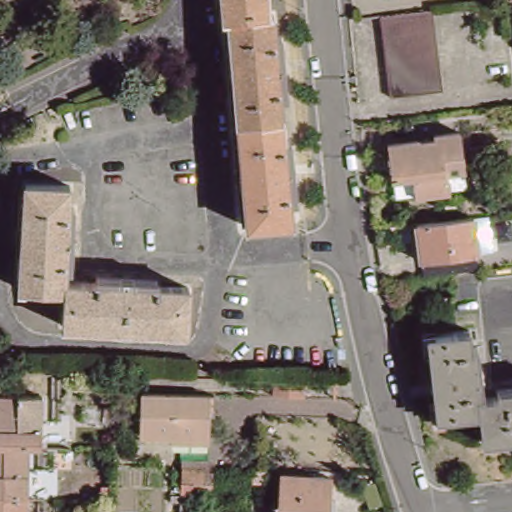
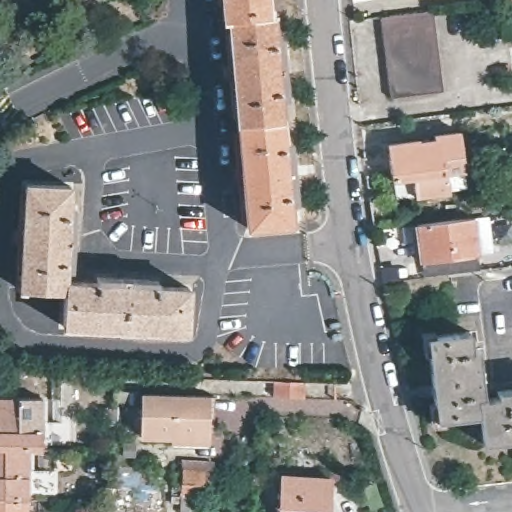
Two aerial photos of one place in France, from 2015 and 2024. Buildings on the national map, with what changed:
unchanged [(230,21),(225,21),(223,0),(267,0),(268,18),(230,21)]
unchanged [(500,0),(512,0),(512,3),(500,4),(500,0)]
unchanged [(433,12),(443,91),(390,99),(380,18),(433,12)]
unchanged [(230,21),(268,18),(273,17),(275,37),(280,37),(286,99),(281,99),(282,121),(240,124),(230,21)]
unchanged [(285,145),(290,145),(295,202),(290,202),(291,225),(249,227),(240,124),(282,121),(285,145)]
unchanged [(450,171),(452,190),(417,195),(415,175),(395,178),(391,143),(437,138),(437,133),(463,130),(467,170),(450,171)]
unchanged [(71,187),(70,210),(75,210),(72,273),(67,273),(67,282),(67,294),(21,292),(27,186),(71,187)]
unchanged [(422,262),(417,226),(439,224),(476,219),(480,256),(422,262)]
unchanged [(187,332),(65,326),(67,294),(67,282),(99,283),(100,278),(159,281),(160,286),(190,288),(187,332)]
unchanged [(471,328),(472,346),(479,346),(483,391),(477,392),(478,396),(479,411),(436,416),(429,333),(471,328)]
unchanged [(305,382),(304,400),(272,399),(273,382),(305,382)]
unchanged [(479,411),(478,396),(498,393),(498,389),(512,387),(512,434),(481,437),(479,411)]
unchanged [(215,394),(212,430),(207,430),(207,433),(139,431),(140,392),(208,394),(215,394)]
unchanged [(42,450),(30,450),(0,450),(0,401),(43,402),(42,450)]
unchanged [(30,450),(29,501),(0,501),(0,450),(30,450)]
unchanged [(182,496),(185,470),(205,471),(203,497),(182,496)]
unchanged [(330,512),(280,512),(283,477),(332,480),(330,512)]
unchanged [(29,501),(29,512),(0,512),(0,501),(29,501)]

